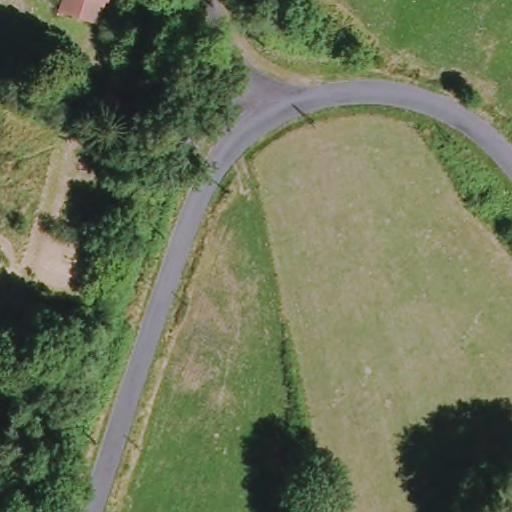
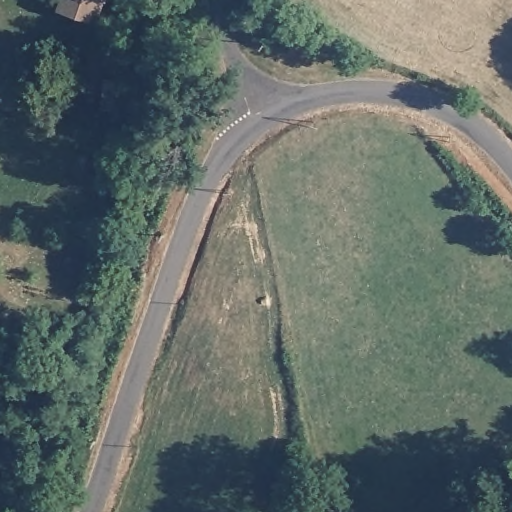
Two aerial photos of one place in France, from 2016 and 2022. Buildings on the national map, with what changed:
unchanged [(67,0),(102,0),(98,19),(65,7),(67,0)]
unchanged [(122,101),(121,132),(102,131),(104,101),(122,101)]

